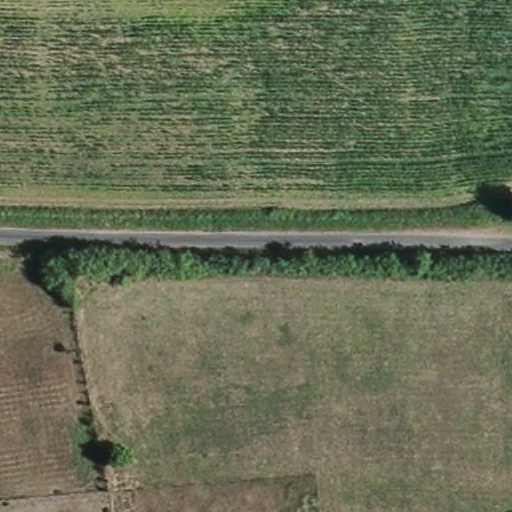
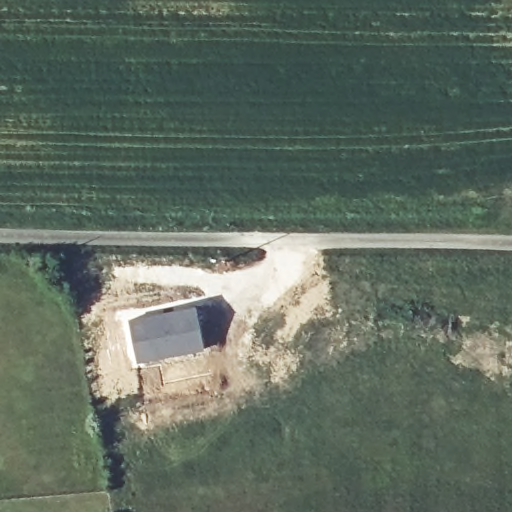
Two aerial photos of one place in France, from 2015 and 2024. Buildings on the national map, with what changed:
new [(195,304),(205,349),(136,364),(127,318),(195,304)]

